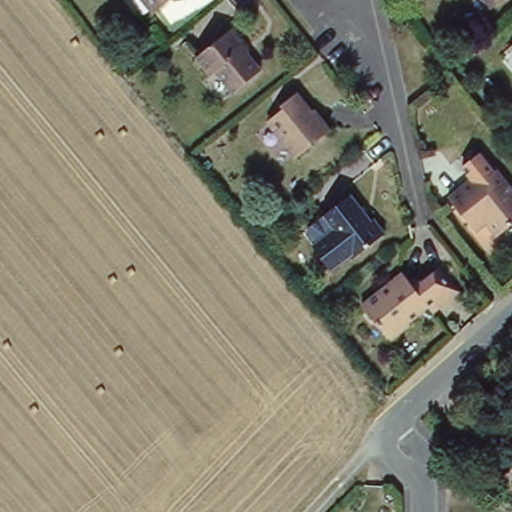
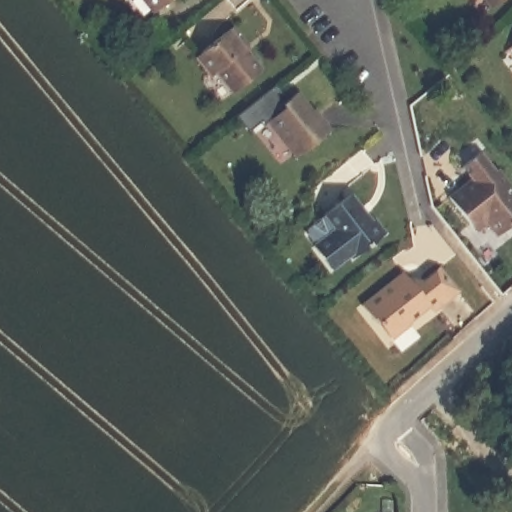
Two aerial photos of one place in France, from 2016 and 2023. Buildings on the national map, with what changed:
unchanged [(151,17),(138,0),(172,0),(151,17)]
unchanged [(490,6),(486,0),(498,0),(490,6)]
unchanged [(249,42),(243,48),(260,69),(232,92),(215,71),(209,75),(194,55),(233,25),(249,42)]
unchanged [(299,104),(302,102),(325,130),(293,156),(269,126),(282,114),(278,109),(293,97),(299,104)]
unchanged [(512,186),(512,187),(510,190),(512,192),(512,225),(500,235),(481,212),(471,221),(451,197),(474,177),(462,165),(481,149),(512,186)]
unchanged [(375,222),(378,219),(391,232),(358,258),(356,256),(338,271),(318,247),(341,228),(330,215),(354,196),(375,222)]
unchanged [(457,293),(435,311),(428,303),(408,320),(412,323),(395,337),(381,320),(377,323),(362,307),(405,273),(410,281),(422,281),(436,269),(457,293)]

